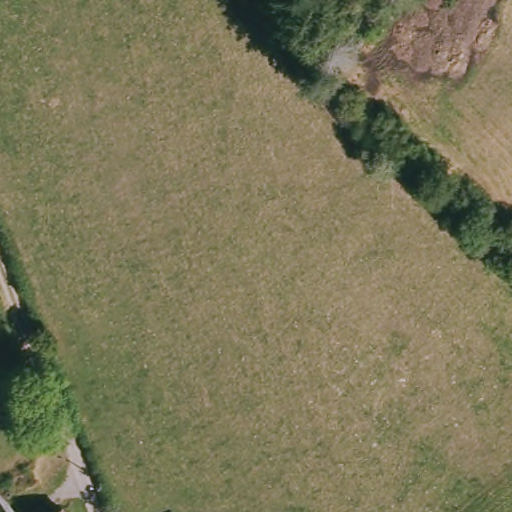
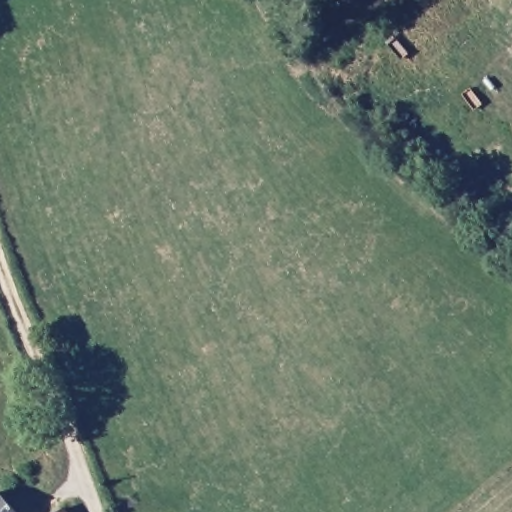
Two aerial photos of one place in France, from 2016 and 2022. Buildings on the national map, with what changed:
unchanged [(0,492),(5,487),(26,512),(0,512),(0,492)]
unchanged [(72,512),(63,512),(68,507),(72,512)]

